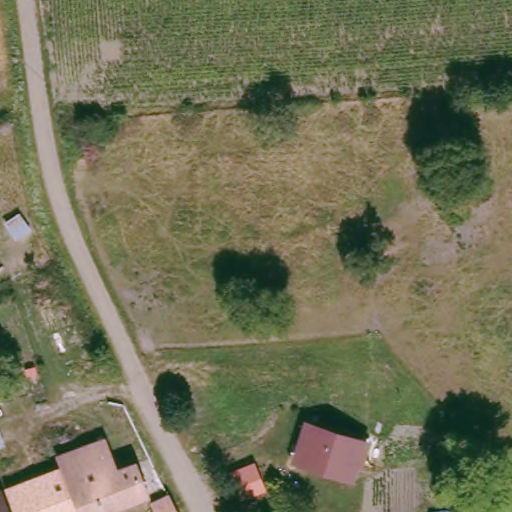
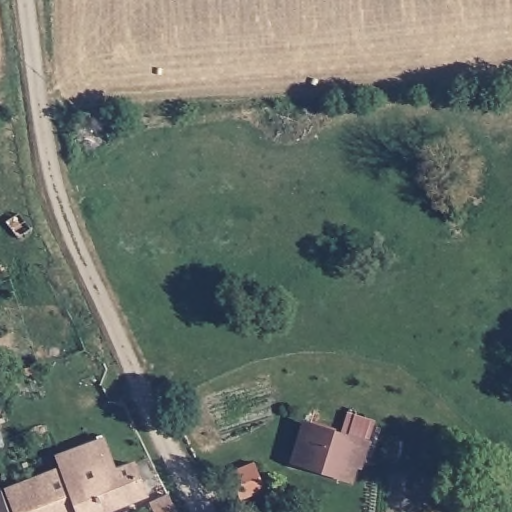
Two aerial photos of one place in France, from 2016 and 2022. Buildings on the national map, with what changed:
unchanged [(331,467),(301,457),(311,425),(368,442),(361,460),(358,459),(355,468),(353,474),(331,467)]
unchanged [(59,454),(102,437),(114,468),(133,461),(146,491),(94,512),(13,512),(4,489),(39,476),(63,466),(59,454)]
unchanged [(39,476),(4,489),(0,479),(0,455),(28,444),(39,476)]
unchanged [(0,512),(0,498),(5,512),(0,512)]
unchanged [(180,512),(158,512),(156,507),(163,504),(174,499),(180,512)]

